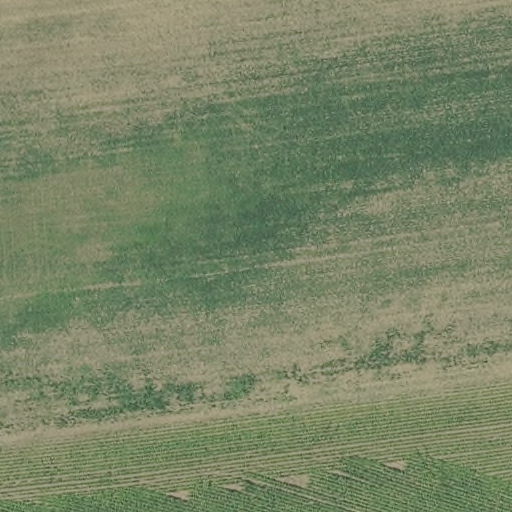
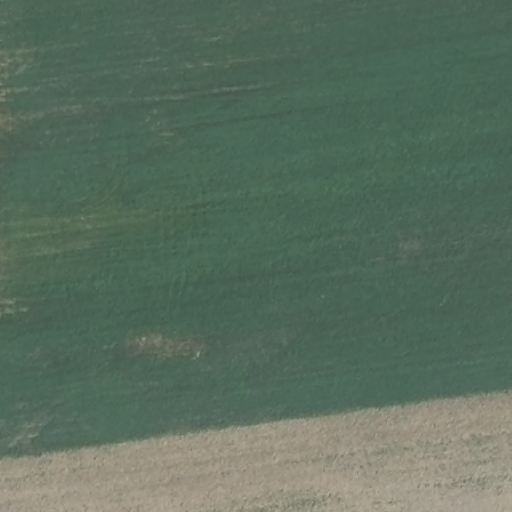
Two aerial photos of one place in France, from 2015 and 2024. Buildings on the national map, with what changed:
[]

